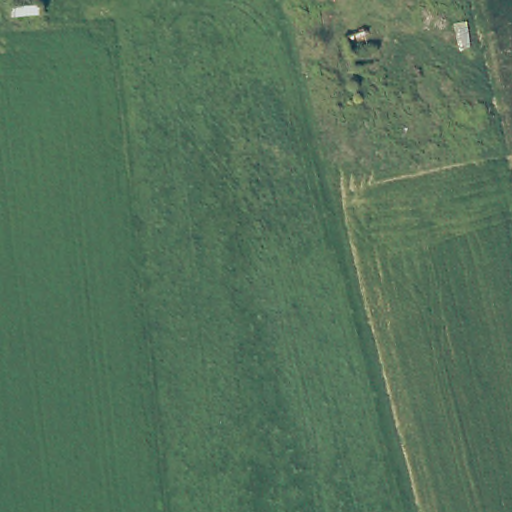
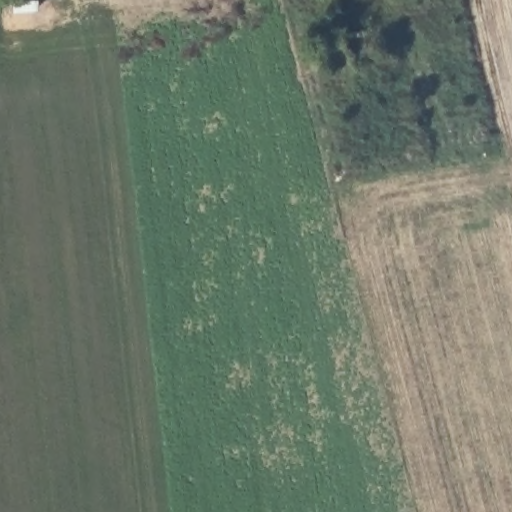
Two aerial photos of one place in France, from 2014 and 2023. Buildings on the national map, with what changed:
unchanged [(14,14),(13,0),(40,0),(40,13),(14,14)]

